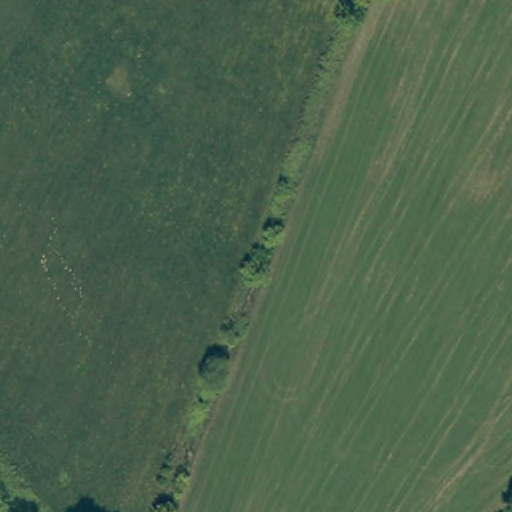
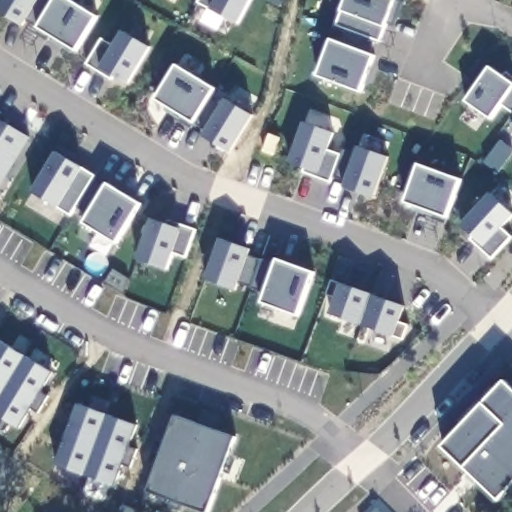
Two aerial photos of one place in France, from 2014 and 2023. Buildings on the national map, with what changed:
new [(53,0),(69,0),(97,17),(75,50),(37,27),(27,21),(22,27),(0,14),(0,0),(45,0),(51,5),(53,0)]
new [(210,9),(198,4),(199,0),(251,0),(238,24),(210,9)]
new [(341,11),(345,0),(395,0),(401,2),(392,25),(386,22),(384,27),(379,42),(373,39),(369,55),(373,56),(359,91),(317,75),(330,40),(341,11)]
new [(149,47),(128,85),(117,78),(112,81),(86,66),(102,40),(112,45),(121,32),(149,47)]
new [(208,99),(219,108),(224,99),(253,117),(231,153),(202,136),(207,127),(195,120),(193,124),(153,100),(174,66),(213,89),(208,99)]
new [(502,77),(506,71),(512,75),(512,114),(501,103),(491,117),(465,101),(489,67),(502,77)]
new [(512,114),(512,121),(508,119),(512,114)]
new [(0,187),(0,121),(29,139),(0,187)]
new [(334,134),(328,150),(340,154),(343,150),(354,153),(357,147),(388,157),(374,198),(343,187),(346,180),(332,177),(331,182),(304,173),(308,170),(289,164),(303,124),(334,134)]
new [(68,217),(30,192),(56,152),(83,170),(94,177),(68,217)]
new [(445,218),(445,225),(431,219),(434,213),(405,203),(418,166),(460,181),(445,218)]
new [(117,244),(83,225),(107,185),(140,205),(117,244)]
new [(512,216),(502,230),(510,239),(492,259),(471,241),(475,237),(473,236),(460,225),(490,194),(512,215),(512,216)]
new [(186,258),(173,253),(168,271),(136,262),(151,219),(171,225),(171,222),(196,231),(186,258)]
new [(298,316),(261,303),(264,292),(239,282),(236,291),(205,281),(219,240),(251,250),(248,257),(275,265),(276,260),(311,272),(298,316)]
new [(403,340),(394,337),(328,316),(334,300),(325,296),(331,281),(340,284),(405,307),(400,322),(408,326),(403,340)]
new [(52,372),(41,392),(48,396),(37,413),(30,409),(19,428),(0,417),(0,341),(52,372)]
new [(512,388),(512,488),(500,502),(442,447),(505,381),(512,388)]
new [(63,443),(55,441),(62,422),(70,425),(77,403),(136,426),(128,447),(137,450),(130,468),(122,465),(114,487),(55,465),(63,443)]
new [(199,423),(202,412),(215,417),(212,428),(236,437),(208,512),(202,512),(183,505),(180,512),(168,507),(170,501),(146,492),(157,465),(149,462),(154,446),(162,448),(175,415),(199,423)]
new [(379,502),(388,512),(369,512),(379,502)]

